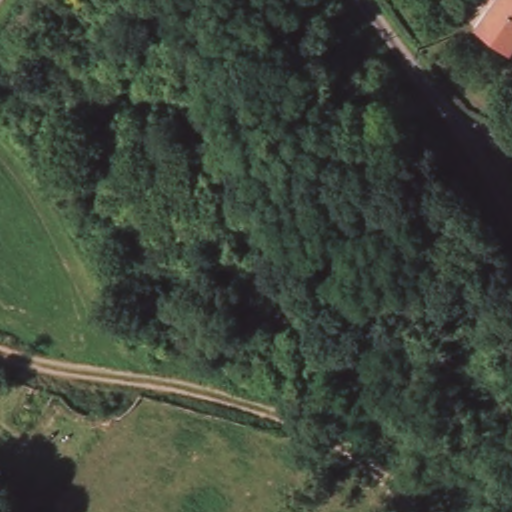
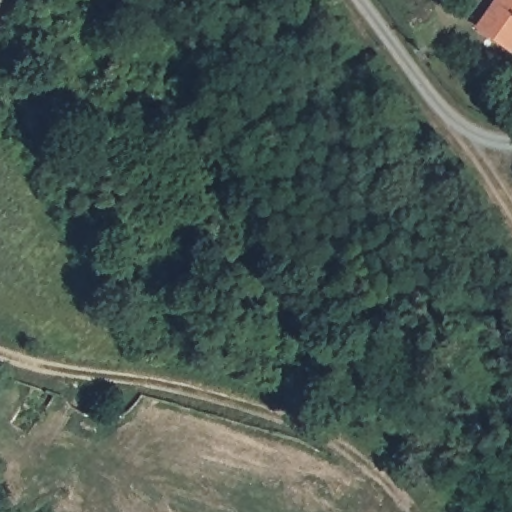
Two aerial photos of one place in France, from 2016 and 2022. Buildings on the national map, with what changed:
unchanged [(476,22),(483,14),(494,0),(512,0),(512,50),(476,22)]

